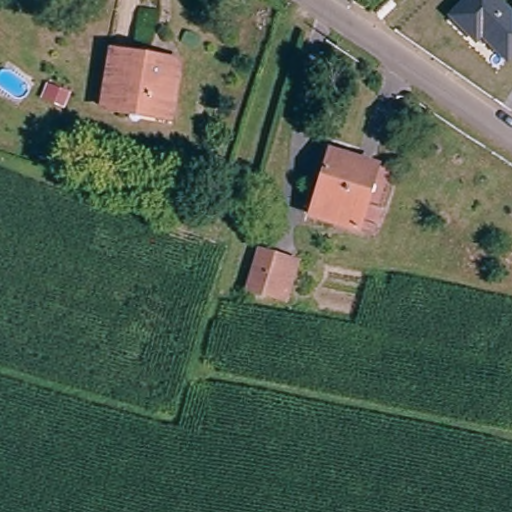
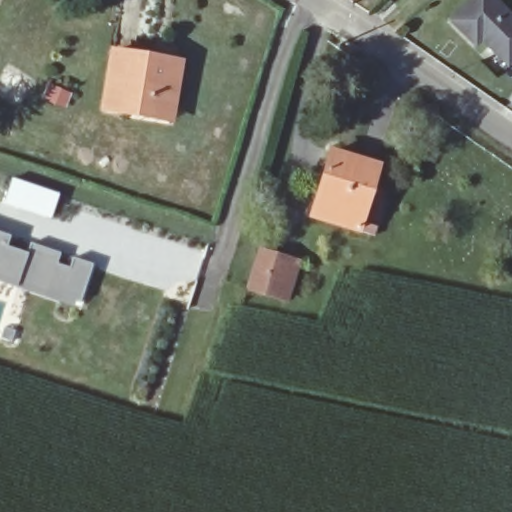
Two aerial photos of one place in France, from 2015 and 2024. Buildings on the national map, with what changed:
unchanged [(461,0),(503,0),(512,9),(512,60),(508,65),(482,39),(476,45),(446,14),(461,0)]
unchanged [(129,57),(129,61),(148,65),(149,60),(176,64),(170,109),(124,102),(122,114),(99,110),(108,54),(129,57)]
unchanged [(391,166),(379,205),(364,200),(360,215),(375,220),(372,230),(310,211),(329,147),(391,166)]
new [(59,194),(50,219),(3,204),(13,177),(59,194)]
new [(9,235),(6,246),(27,253),(30,242),(59,253),(56,262),(70,267),(73,257),(92,263),(75,306),(16,286),(15,290),(0,284),(0,232),(9,235)]
unchanged [(257,247),(301,260),(287,305),(243,290),(257,247)]

